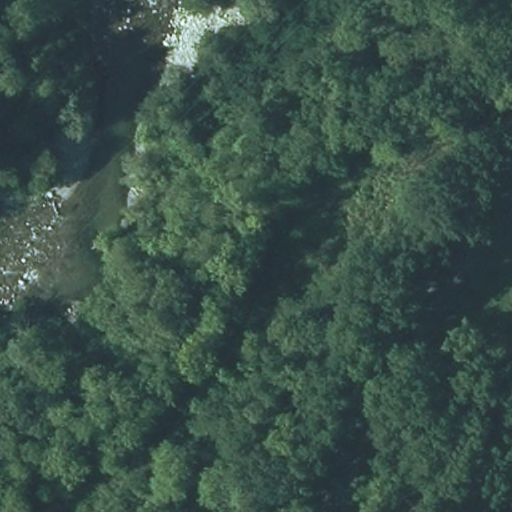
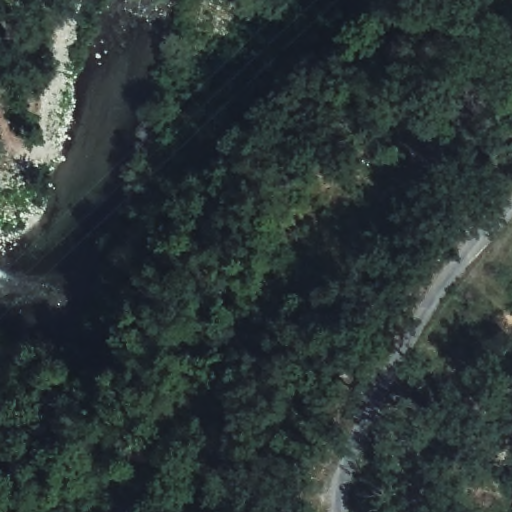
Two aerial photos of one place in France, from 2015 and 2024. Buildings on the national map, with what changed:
unchanged [(512,508),(507,506),(512,496),(512,508)]

